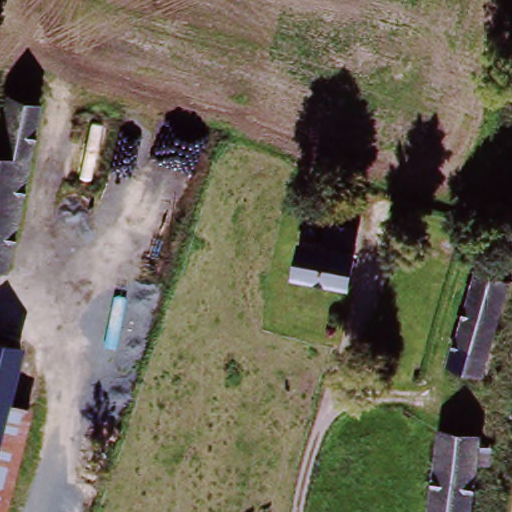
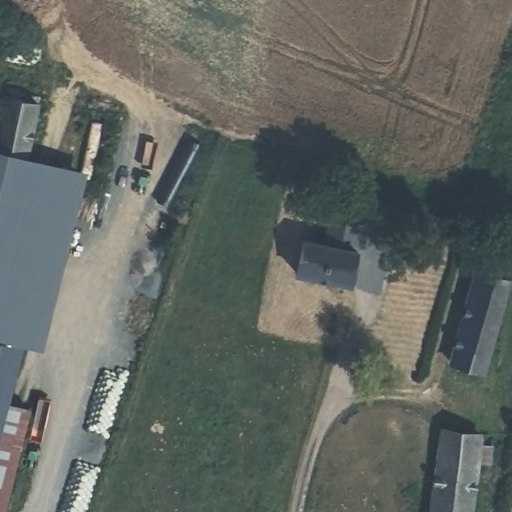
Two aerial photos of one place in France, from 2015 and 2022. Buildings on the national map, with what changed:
new [(41,88),(40,101),(31,154),(87,170),(42,348),(25,344),(21,355),(0,348),(0,140),(8,80),(41,88)]
demolished [(39,107),(4,273),(0,272),(0,140),(8,101),(39,107)]
unchanged [(353,251),(352,285),(290,282),(291,248),(315,249),(316,220),(349,222),(347,251),(353,251)]
unchanged [(451,370),(478,266),(511,274),(508,287),(485,379),(451,370)]
unchanged [(485,379),(508,287),(512,289),(512,330),(498,382),(485,379)]
unchanged [(5,413),(0,428),(0,348),(21,355),(5,413)]
unchanged [(0,504),(0,428),(5,413),(25,419),(0,504)]
unchanged [(440,436),(478,441),(469,512),(429,512),(440,436)]

